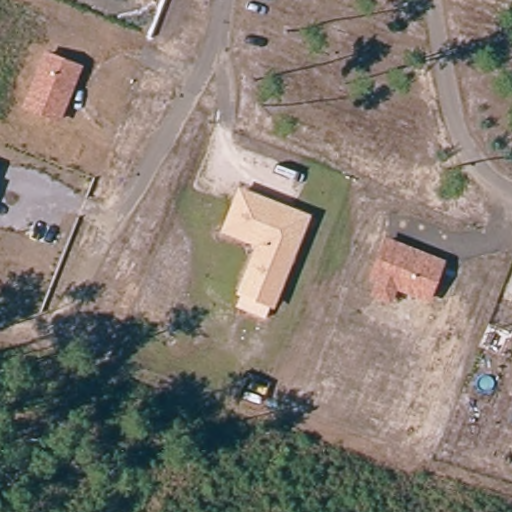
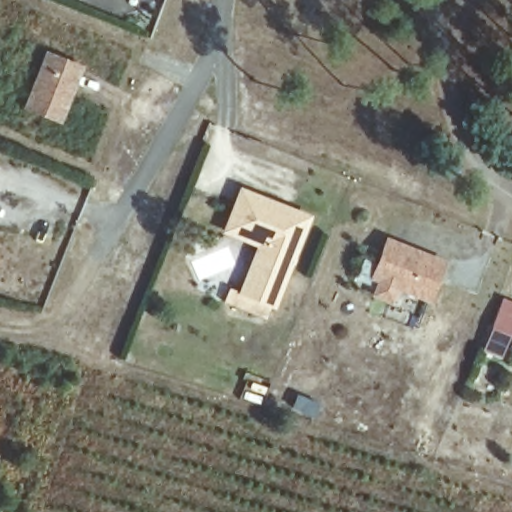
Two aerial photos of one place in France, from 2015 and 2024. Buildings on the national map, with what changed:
unchanged [(26,104),(46,52),(78,65),(73,77),(69,87),(57,117),(26,104)]
unchanged [(272,302),(242,289),(262,242),(227,227),(243,189),(250,191),(307,215),(272,302)]
unchanged [(373,292),(378,278),(371,275),(386,239),(403,246),(410,250),(440,262),(425,298),(393,285),(388,298),(373,292)]
new [(482,350),(502,297),(512,301),(512,335),(510,334),(500,357),(482,350)]

